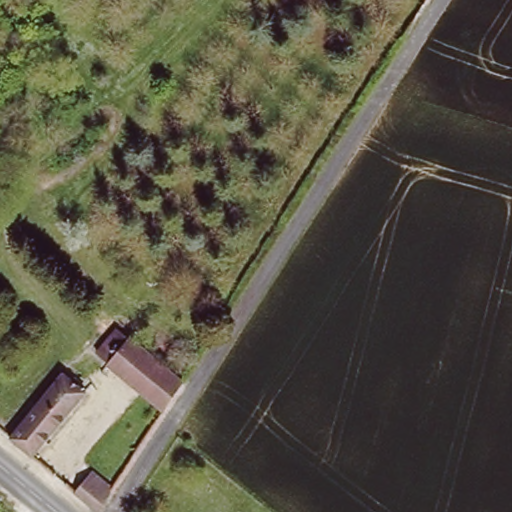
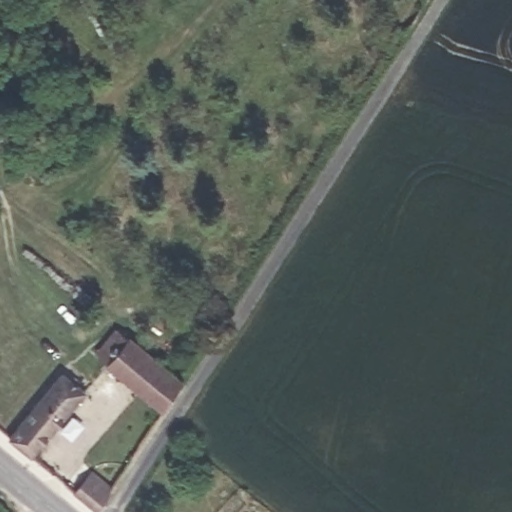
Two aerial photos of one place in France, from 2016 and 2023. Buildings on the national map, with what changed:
unchanged [(105,367),(126,342),(181,386),(162,415),(105,367)]
unchanged [(29,460),(7,440),(61,377),(85,397),(31,460),(29,460)]
unchanged [(91,478),(106,491),(97,505),(80,491),(91,478)]

